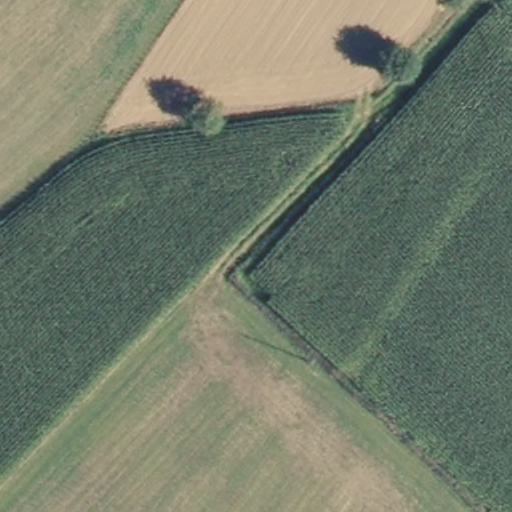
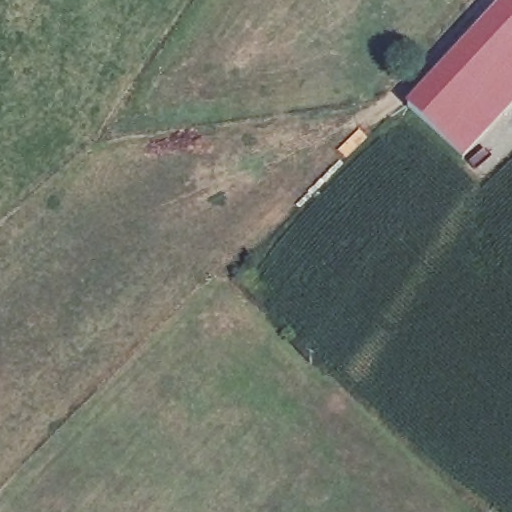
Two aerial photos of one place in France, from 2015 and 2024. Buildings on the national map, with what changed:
new [(464,159),(405,105),(503,0),(512,0),(512,106),(464,159)]

